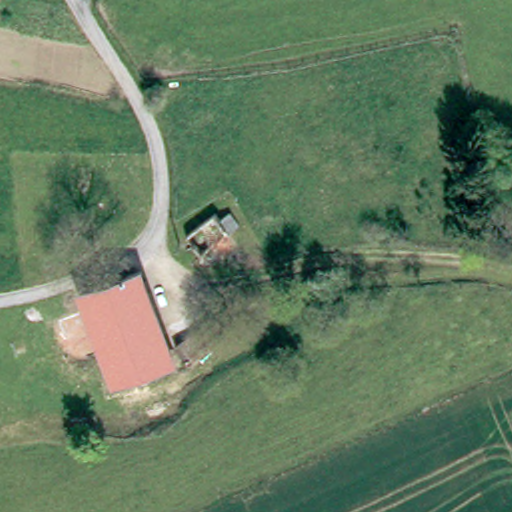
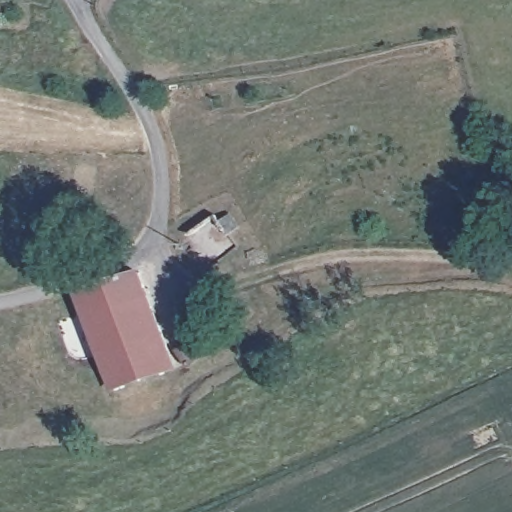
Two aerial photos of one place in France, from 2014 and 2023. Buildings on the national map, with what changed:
unchanged [(213,271),(203,259),(186,236),(218,211),(236,234),(245,246),(213,271)]
unchanged [(104,384),(78,289),(136,271),(164,366),(104,384)]
unchanged [(183,368),(171,348),(223,312),(234,332),(183,368)]

